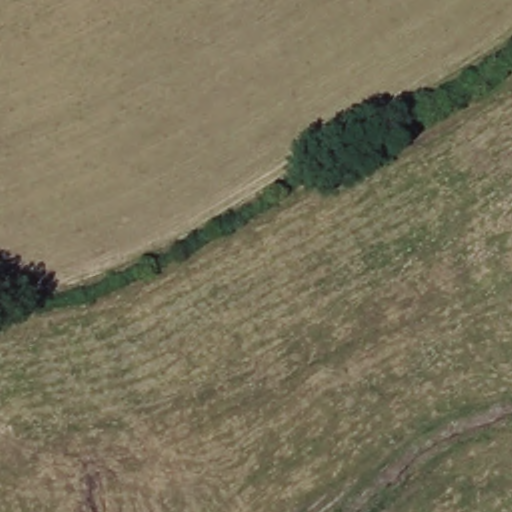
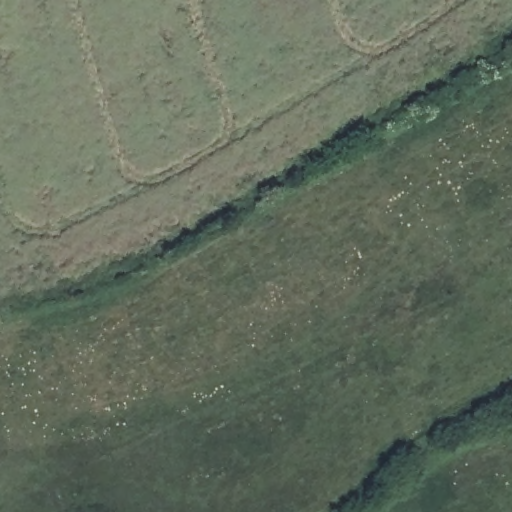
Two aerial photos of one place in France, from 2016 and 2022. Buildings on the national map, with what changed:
[]

